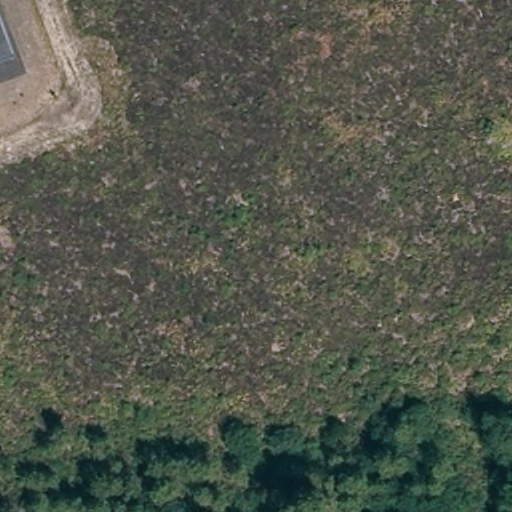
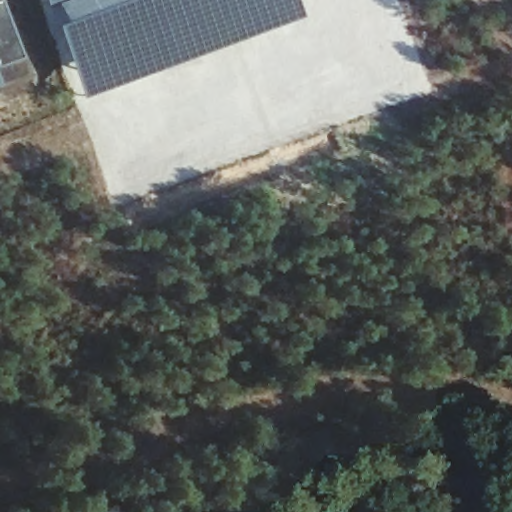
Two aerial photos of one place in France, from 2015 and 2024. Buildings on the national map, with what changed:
new [(76,99),(40,0),(291,0),(297,17),(76,99)]
unchanged [(0,65),(0,6),(19,58),(0,65)]

